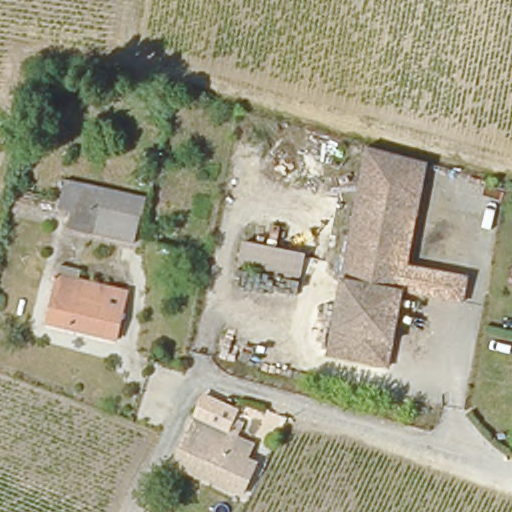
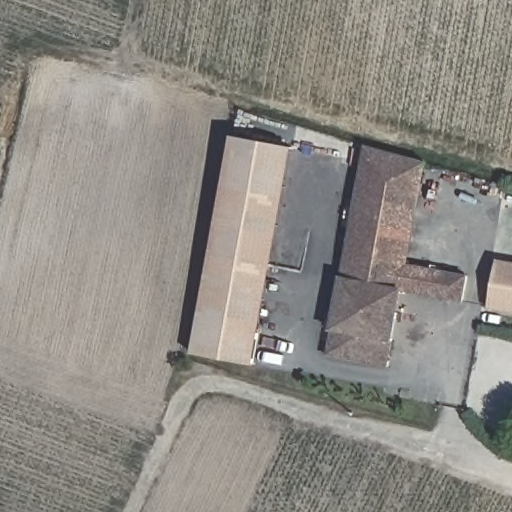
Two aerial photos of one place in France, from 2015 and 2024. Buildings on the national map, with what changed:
new [(294,146),(254,363),(192,352),(231,135),(294,146)]
unchanged [(345,252),(370,146),(430,161),(405,267),(345,252)]
demolished [(134,235),(81,224),(62,220),(69,192),(87,196),(139,207),(134,235)]
demolished [(307,256),(300,279),(240,265),(245,241),(307,256)]
unchanged [(350,292),(335,289),(345,252),(405,267),(462,281),(457,307),(396,293),(380,366),(345,357),(350,292)]
new [(512,307),(490,304),(494,259),(512,261),(512,307)]
demolished [(47,321),(55,275),(80,279),(69,325),(47,321)]
demolished [(80,279),(115,286),(113,301),(122,303),(118,334),(69,325),(80,279)]
unchanged [(320,351),(335,289),(350,292),(345,357),(320,351)]
demolished [(238,430),(229,455),(250,464),(238,495),(169,467),(190,422),(216,433),(221,424),(238,430)]

